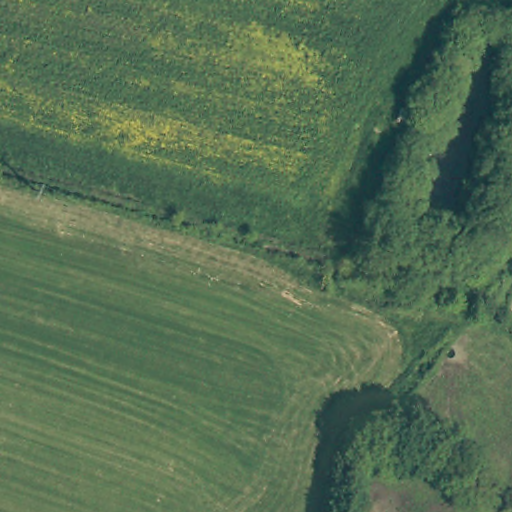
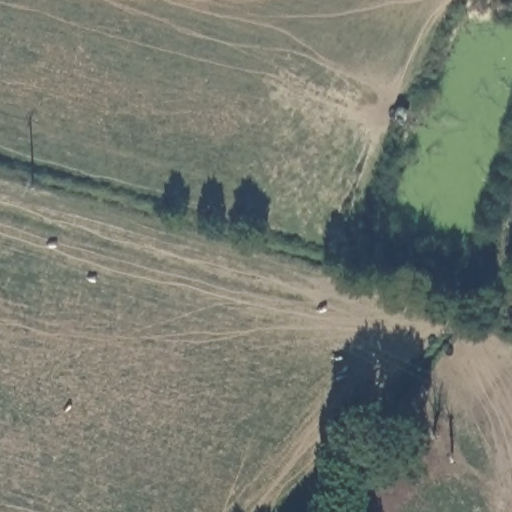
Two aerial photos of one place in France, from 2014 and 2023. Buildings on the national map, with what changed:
[]

